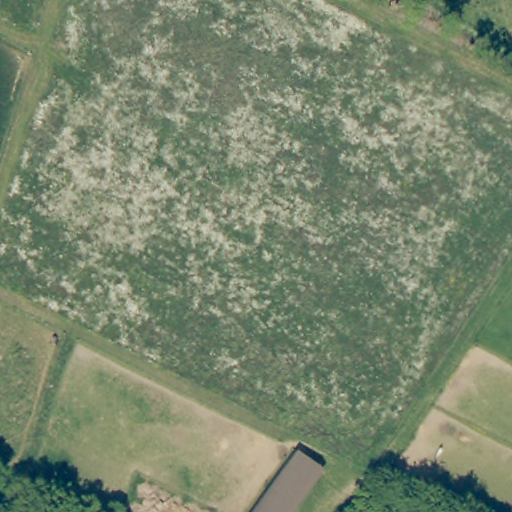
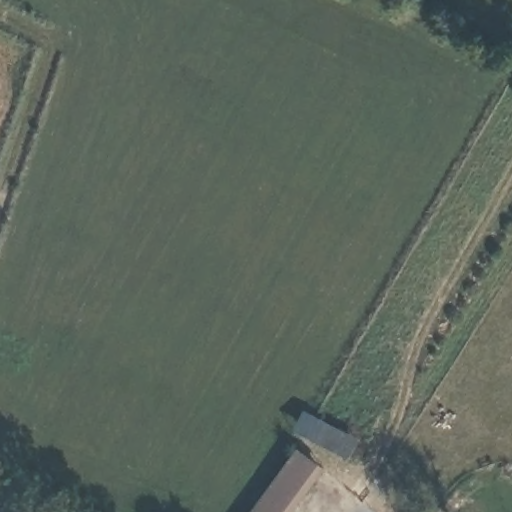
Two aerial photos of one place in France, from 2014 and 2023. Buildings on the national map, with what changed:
new [(302,411),(357,441),(347,460),(291,432),(302,411)]
unchanged [(323,471),(292,512),(251,512),(298,451),(323,471)]

